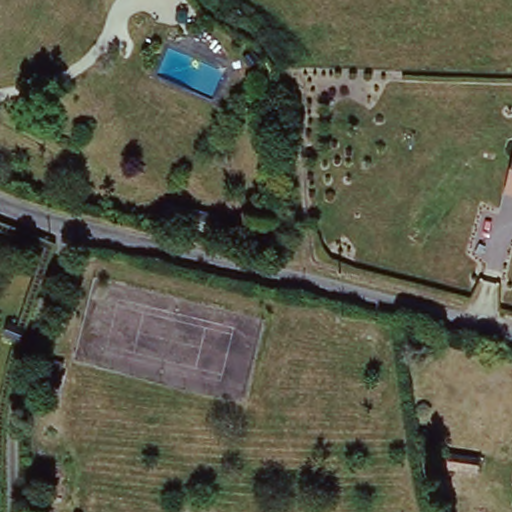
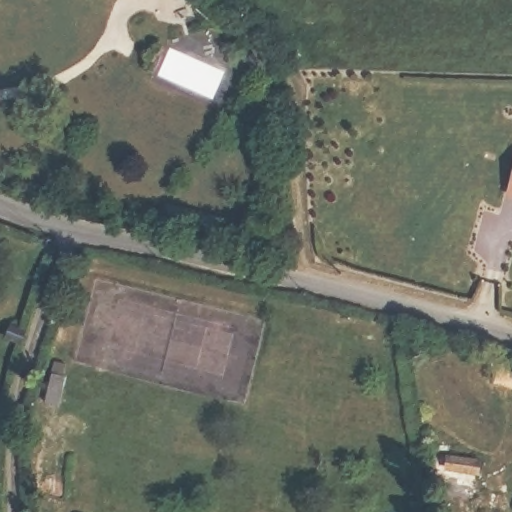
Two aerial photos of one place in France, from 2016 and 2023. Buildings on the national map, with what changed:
unchanged [(237,27),(228,40),(219,35),(227,23),(237,27)]
unchanged [(512,175),(512,192),(507,190),(512,175)]
unchanged [(224,210),(222,233),(170,226),(174,206),(224,210)]
unchanged [(12,329),(0,324),(0,315),(2,306),(17,312),(12,329)]

